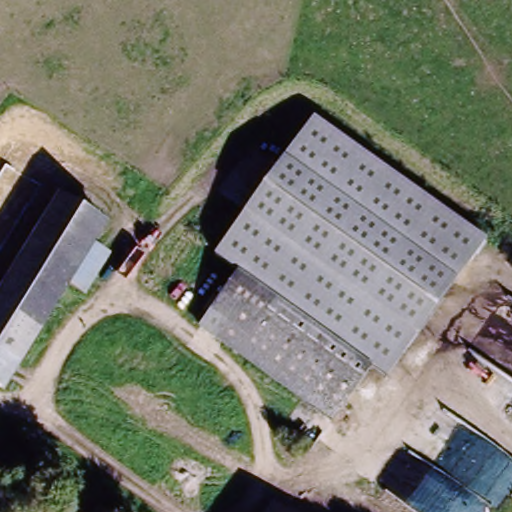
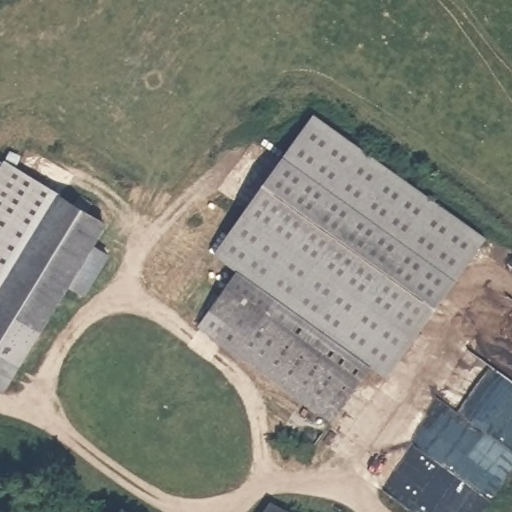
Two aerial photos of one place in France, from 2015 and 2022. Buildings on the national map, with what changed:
unchanged [(485,239),(387,381),(369,371),(332,423),(195,330),(237,270),(214,253),(316,115),(485,239)]
new [(0,172),(5,164),(54,194),(0,281),(0,172)]
unchanged [(103,224),(90,245),(107,256),(82,298),(64,288),(0,391),(0,282),(54,194),(103,224)]
unchanged [(282,512),(269,512),(273,507),(282,512)]

